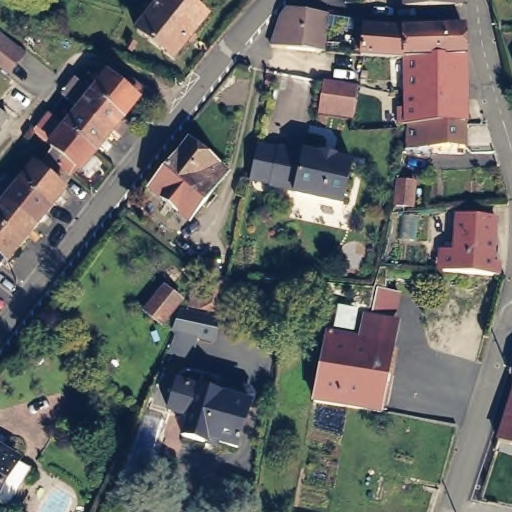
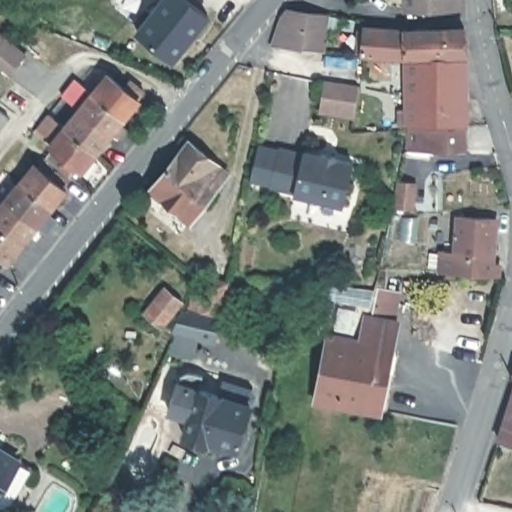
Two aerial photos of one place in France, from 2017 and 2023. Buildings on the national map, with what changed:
unchanged [(213,22),(178,65),(141,36),(170,0),(184,0),(213,22)]
unchanged [(410,0),(466,0),(467,5),(410,7),(410,0)]
unchanged [(281,20),(288,11),(307,14),(326,16),(326,21),(321,52),(274,47),(271,47),(281,20)]
unchanged [(364,26),(404,30),(464,28),(465,57),(408,59),(388,58),(361,56),(364,26)]
unchanged [(0,36),(0,35),(8,41),(23,53),(19,58),(10,69),(0,61),(0,36)]
unchanged [(399,111),(407,110),(407,81),(408,59),(465,57),(466,70),(463,70),(464,125),(409,127),(407,127),(399,126),(399,111)]
unchanged [(86,172),(83,169),(76,176),(63,165),(52,156),(58,149),(54,146),(38,133),(43,127),(59,140),(69,127),(83,110),(98,93),(113,74),(128,87),(134,80),(148,91),(142,98),(143,100),(128,118),(115,136),(101,153),(96,160),(101,164),(92,176),(86,172)]
unchanged [(317,115),(318,110),(322,82),(358,87),(352,115),(351,120),(317,115)]
unchanged [(0,129),(0,111),(9,117),(0,129)]
unchanged [(464,125),(465,148),(431,149),(431,152),(428,156),(406,153),(409,127),(464,125)]
unchanged [(189,216),(149,184),(188,137),(228,168),(189,216)]
unchanged [(299,192),(275,186),(284,148),(308,153),(309,151),(325,155),(326,153),(341,156),(340,160),(357,163),(348,206),(298,194),(299,192)]
unchanged [(25,182),(39,164),(43,167),(48,159),(60,168),(73,179),(68,187),(70,190),(56,207),(42,225),(28,242),(13,261),(10,259),(4,266),(3,266),(0,264),(0,212),(10,199),(25,182)]
unchanged [(414,184),(412,208),(397,207),(399,182),(414,184)]
unchanged [(439,271),(440,253),(453,253),(457,217),(497,219),(493,264),(499,265),(498,276),(490,275),(477,274),(439,271)]
unchanged [(286,277),(287,305),(253,306),(254,280),(286,277)]
unchanged [(218,315),(189,308),(195,285),(207,287),(209,278),(226,282),(218,315)]
unchanged [(181,301),(161,326),(145,312),(164,287),(181,301)]
unchanged [(366,341),(371,317),(376,317),(381,289),(394,292),(388,316),(394,317),(393,322),(401,323),(391,376),(397,378),(391,410),(387,409),(386,413),(380,412),(351,407),(318,402),(331,335),(366,341)]
unchanged [(170,354),(174,334),(173,333),(182,313),(188,315),(216,322),(213,342),(196,339),(192,359),(170,354)]
unchanged [(511,378),(512,375),(512,379),(511,378)]
unchanged [(213,441),(212,444),(188,436),(193,416),(174,411),(183,383),(255,404),(242,449),(213,441)]
unchanged [(499,442),(506,418),(508,419),(512,404),(512,447),(499,442)]
unchanged [(5,512),(4,512),(0,509),(0,450),(31,468),(5,512)]

